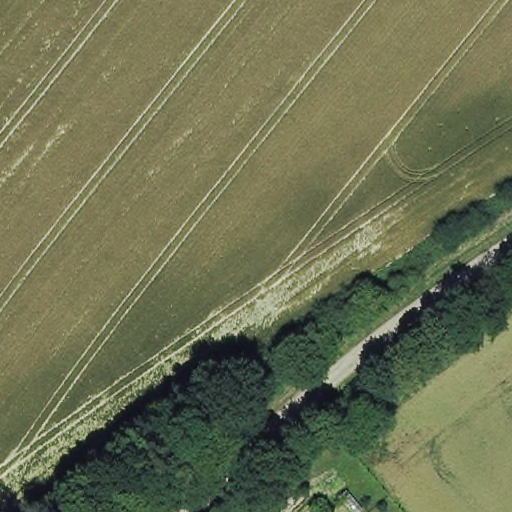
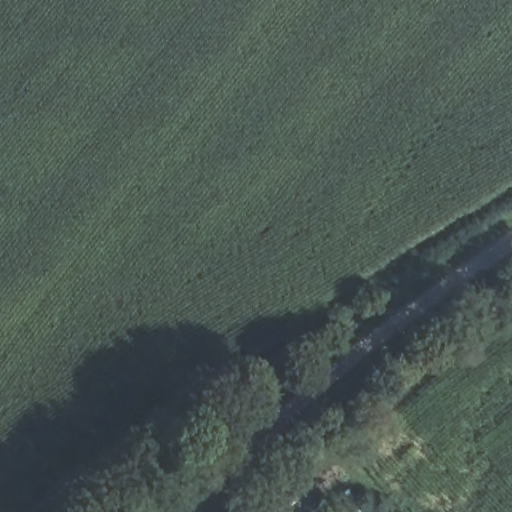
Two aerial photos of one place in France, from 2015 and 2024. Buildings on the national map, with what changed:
unchanged [(286,488),(296,500),(283,512),(272,512),(266,505),(286,488)]

